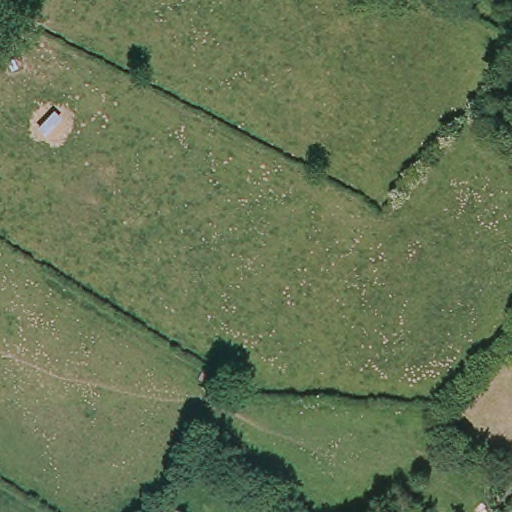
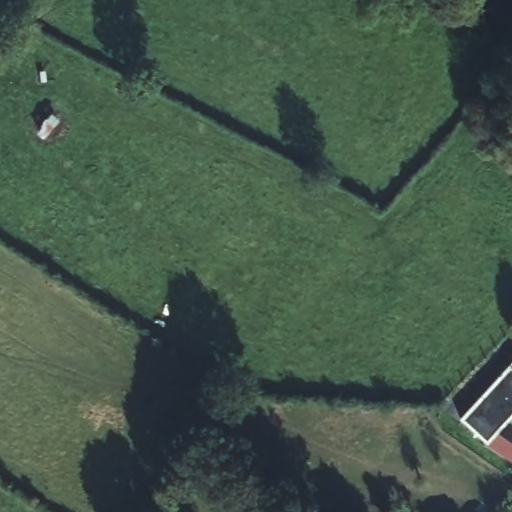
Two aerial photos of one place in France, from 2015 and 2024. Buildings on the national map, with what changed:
new [(460,419),(512,362),(512,417),(497,432),(512,442),(512,461),(487,443),(460,419)]

